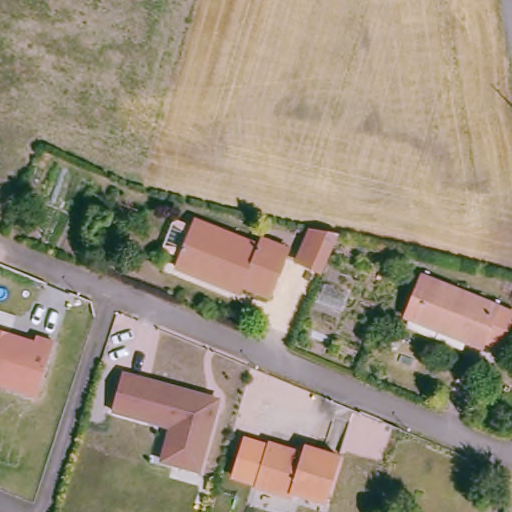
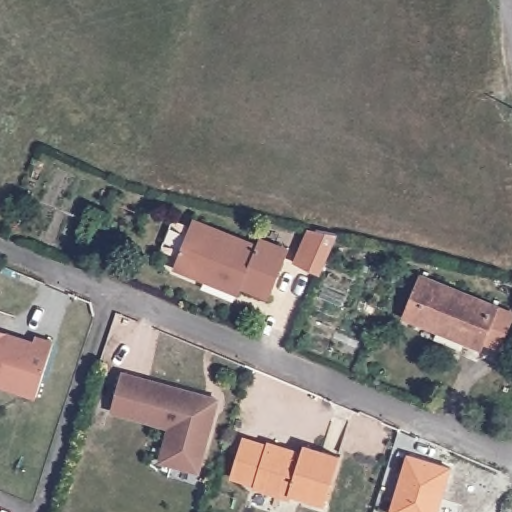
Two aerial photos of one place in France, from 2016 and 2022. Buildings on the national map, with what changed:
unchanged [(176,256),(177,252),(165,246),(162,241),(172,220),(177,218),(190,224),(192,219),(255,246),(258,239),(285,252),(265,297),(241,286),(237,294),(201,276),(172,264),(176,256)]
unchanged [(325,271),(305,262),(299,260),(315,224),(320,225),(343,230),(325,271)]
unchanged [(497,302),(512,310),(512,315),(499,345),(484,337),(480,347),(402,313),(418,276),(495,308),(497,302)]
unchanged [(32,345),(33,337),(50,344),(35,399),(0,388),(0,334),(32,345)]
unchanged [(112,410),(122,375),(165,387),(155,423),(112,410)]
unchanged [(172,428),(155,423),(165,387),(204,398),(214,415),(197,473),(170,465),(160,462),(172,428)]
unchanged [(292,450),(292,457),(301,460),(305,448),(337,459),(325,505),(297,496),(295,501),(255,489),(270,442),(292,450)]
new [(437,512),(391,512),(408,457),(450,470),(437,512)]

